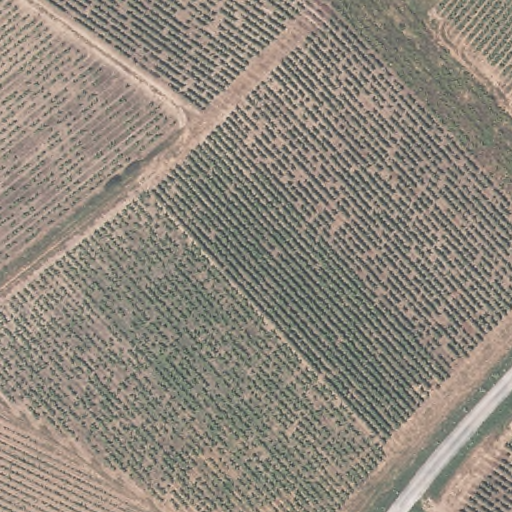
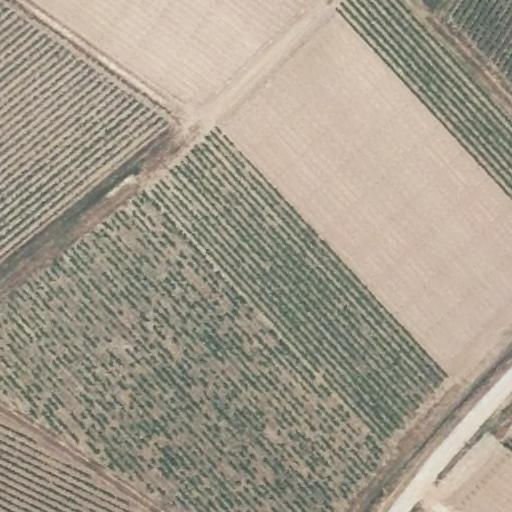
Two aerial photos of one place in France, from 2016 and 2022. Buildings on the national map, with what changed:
[]

